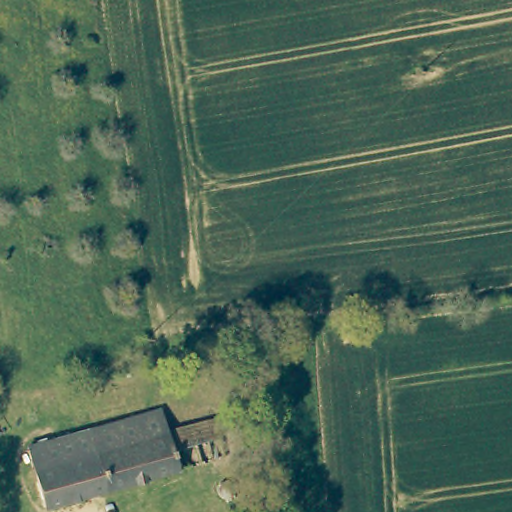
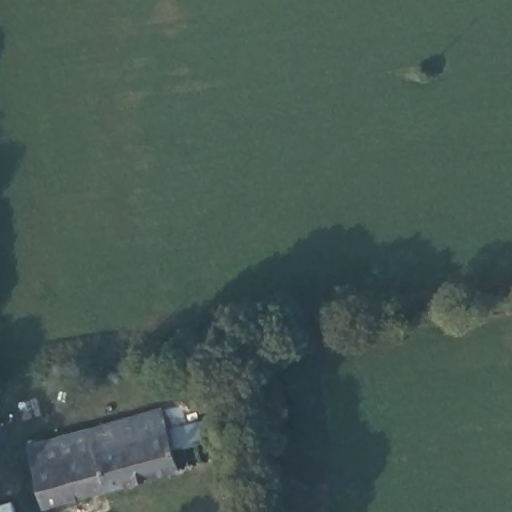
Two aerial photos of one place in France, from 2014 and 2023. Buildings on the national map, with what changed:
unchanged [(42,510),(23,447),(158,407),(166,432),(210,419),(216,437),(171,450),(177,470),(42,510)]
unchanged [(232,512),(230,511),(228,509),(227,505),(227,502),(229,499),(233,498),(239,499),(241,502),(242,506),(240,509),(240,510),(237,512),(232,512)]

